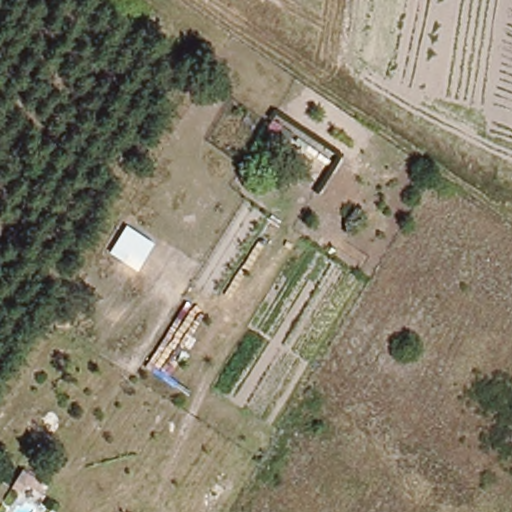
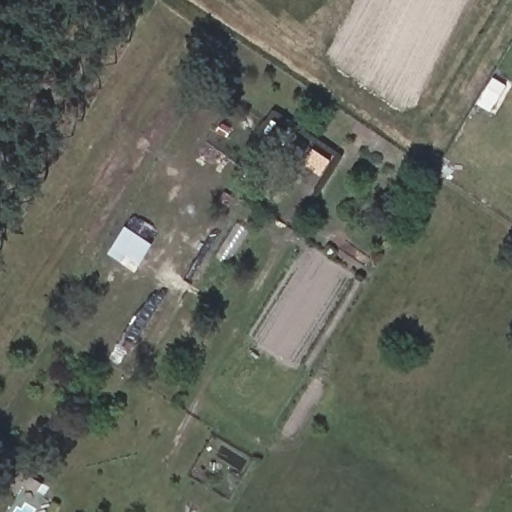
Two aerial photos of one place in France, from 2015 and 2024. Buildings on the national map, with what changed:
unchanged [(40,494),(27,486),(25,491),(17,486),(22,476),(44,490),(40,494)]

